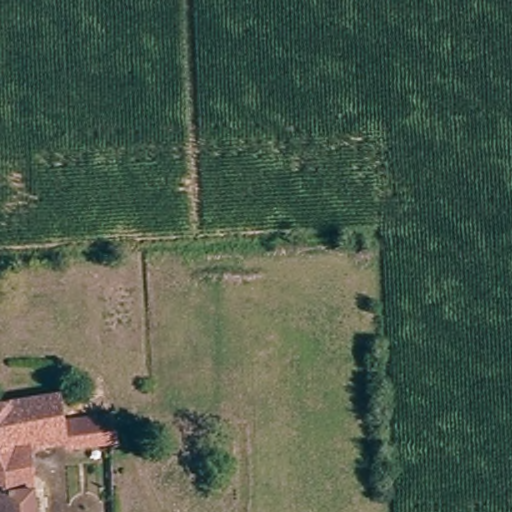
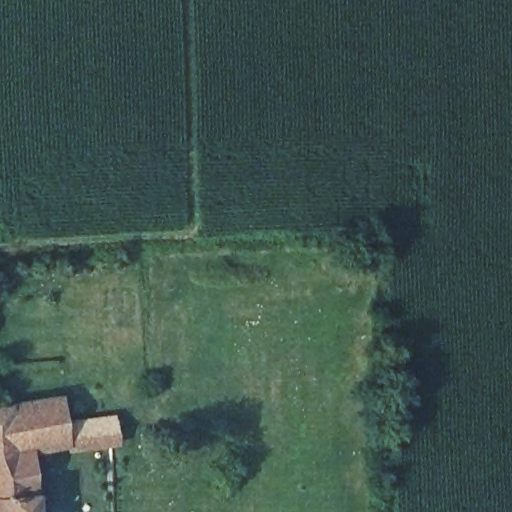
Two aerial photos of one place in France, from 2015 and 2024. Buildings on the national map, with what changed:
unchanged [(120,436),(119,448),(81,449),(81,442),(33,443),(0,444),(0,400),(60,397),(61,423),(120,422),(120,436)]
unchanged [(33,443),(34,471),(0,472),(0,444),(33,443)]
unchanged [(0,512),(0,472),(34,471),(36,512),(0,512)]

